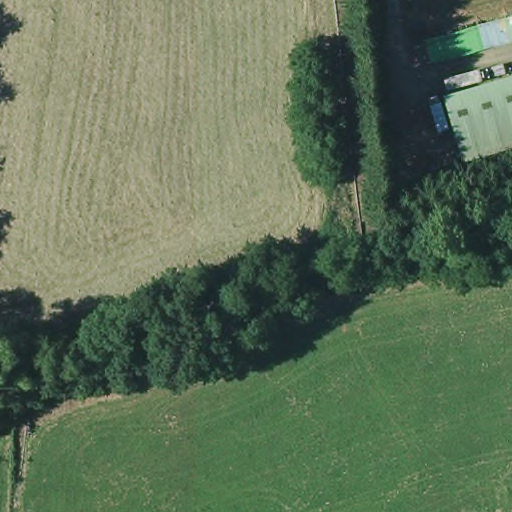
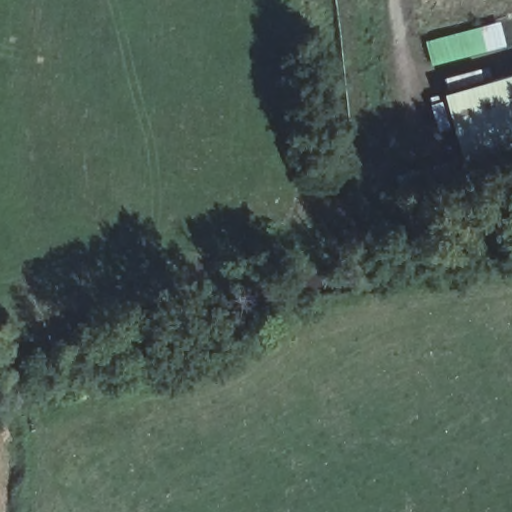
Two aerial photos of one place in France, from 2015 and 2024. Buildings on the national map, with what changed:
unchanged [(426,39),(512,17),(512,44),(433,64),(426,39)]
unchanged [(453,128),(439,129),(429,97),(512,77),(512,150),(465,165),(453,128)]

